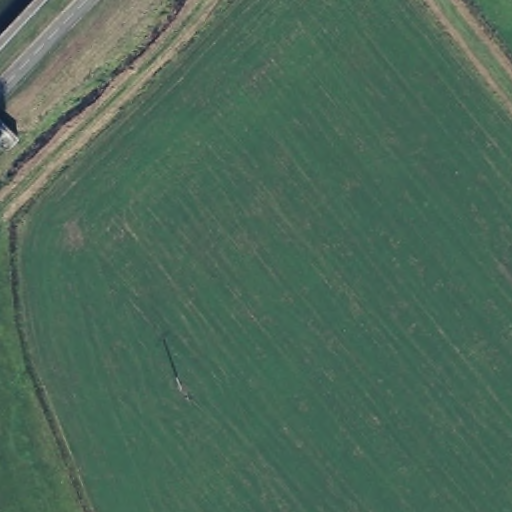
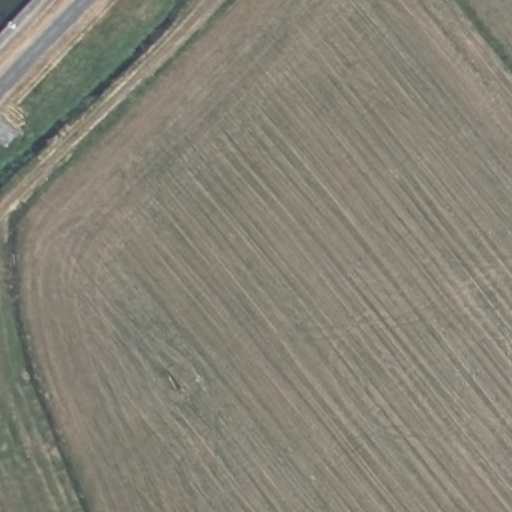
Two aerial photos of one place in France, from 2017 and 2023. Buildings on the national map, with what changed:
unchanged [(0,125),(15,140),(0,155),(0,125)]

